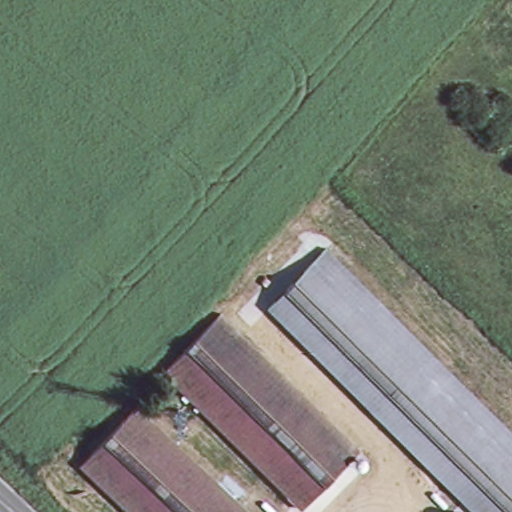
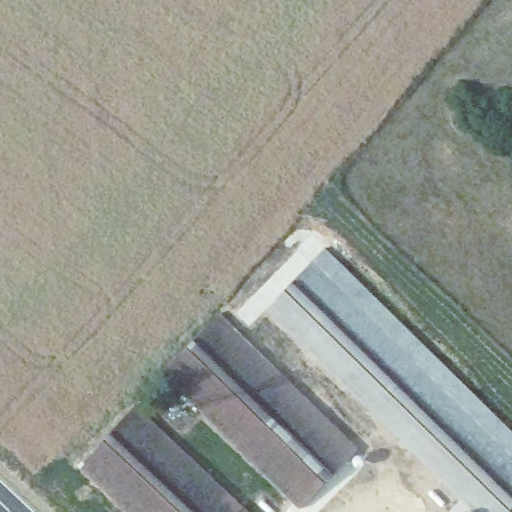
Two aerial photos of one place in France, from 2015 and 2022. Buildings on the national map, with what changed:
unchanged [(279,328),(262,312),(317,250),(333,266),(279,328)]
unchanged [(512,432),(512,507),(508,512),(476,512),(279,328),(333,266),(512,432)]
unchanged [(203,413),(163,376),(216,316),(256,354),(203,413)]
unchanged [(360,452),(306,510),(203,413),(256,354),(360,452)]
unchanged [(122,504),(84,468),(137,406),(177,444),(122,504)]
unchanged [(247,512),(130,512),(122,504),(177,444),(247,512)]

